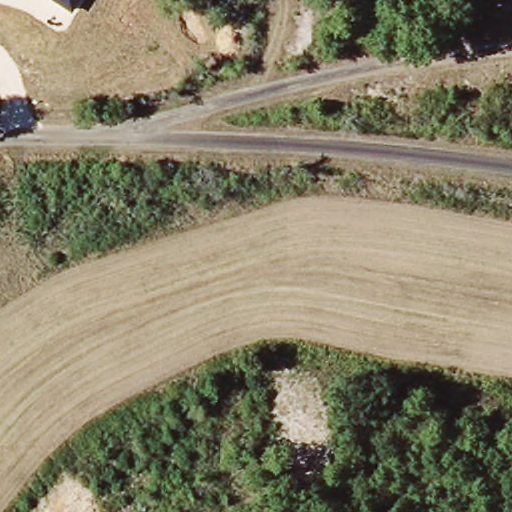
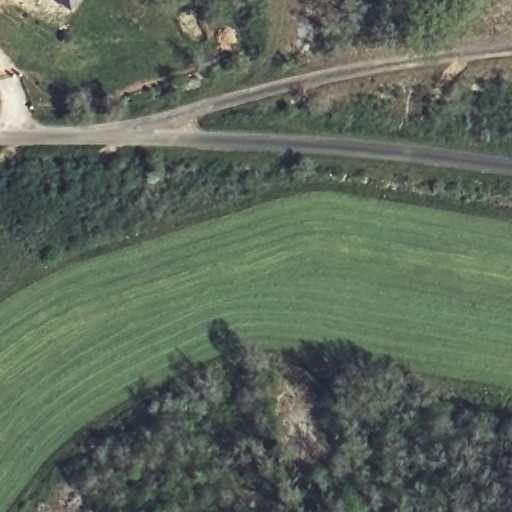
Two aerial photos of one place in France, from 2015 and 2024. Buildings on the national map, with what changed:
unchanged [(70,12),(51,0),(78,0),(70,12)]

